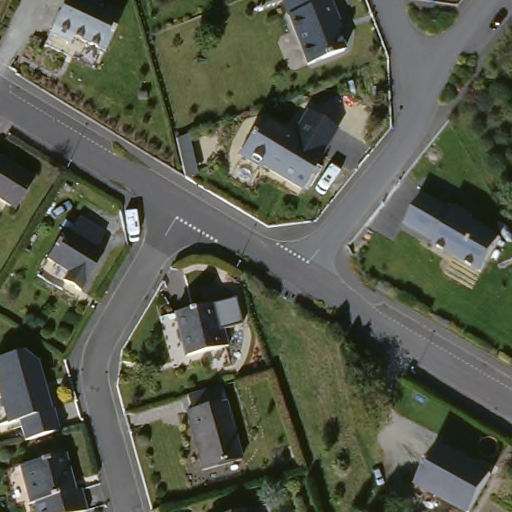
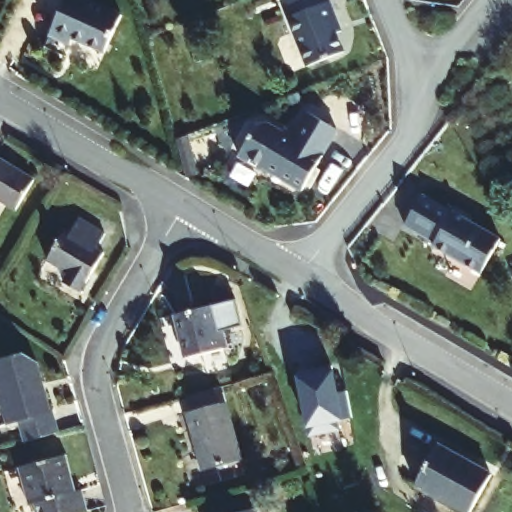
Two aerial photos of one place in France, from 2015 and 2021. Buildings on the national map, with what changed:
unchanged [(101,58),(54,29),(70,0),(114,0),(128,9),(101,58)]
unchanged [(284,0),(327,0),(328,2),(331,1),(338,21),(334,22),(345,52),(308,66),(283,1),(284,0)]
unchanged [(258,119),(265,117),(290,137),(309,114),(336,135),(317,158),(318,159),(294,190),(258,162),(256,164),(235,147),(258,119)]
unchanged [(181,132),(196,189),(183,181),(171,137),(181,132)]
unchanged [(14,211),(0,202),(0,165),(31,182),(14,211)]
unchanged [(426,242),(428,240),(398,221),(416,191),(446,210),(449,205),(466,215),(463,219),(493,237),(473,271),(426,242)]
unchanged [(64,276),(39,262),(60,230),(64,234),(76,218),(100,234),(93,249),(99,254),(77,295),(59,285),(64,276)]
unchanged [(169,315),(211,301),(227,346),(182,361),(169,315)]
unchanged [(51,404),(58,426),(22,437),(15,416),(7,418),(0,396),(0,355),(17,350),(32,355),(48,405),(51,404)]
new [(298,381),(311,378),(309,371),(332,366),(338,393),(346,392),(350,418),(338,421),(340,430),(310,435),(298,381)]
unchanged [(240,466),(204,479),(186,423),(191,420),(185,408),(187,407),(218,397),(240,466)]
unchanged [(471,512),(449,512),(413,492),(437,451),(490,482),(471,512)]
unchanged [(27,501),(22,502),(14,468),(60,455),(71,492),(78,490),(83,509),(73,512),(30,512),(27,501)]
unchanged [(245,508),(247,512),(232,512),(245,508)]

